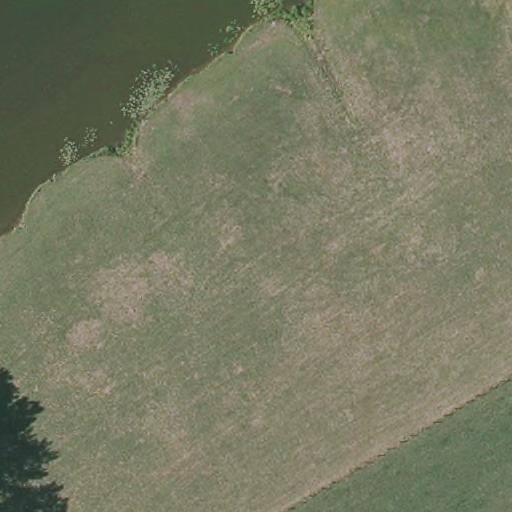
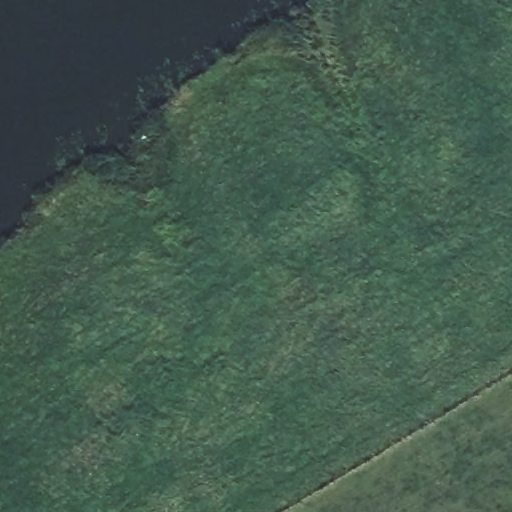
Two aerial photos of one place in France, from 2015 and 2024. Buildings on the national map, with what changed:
[]

